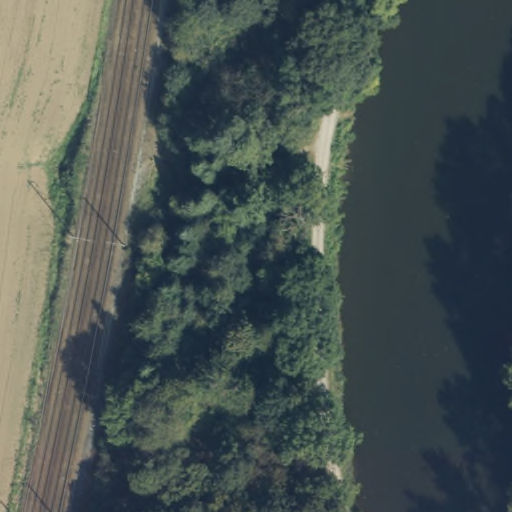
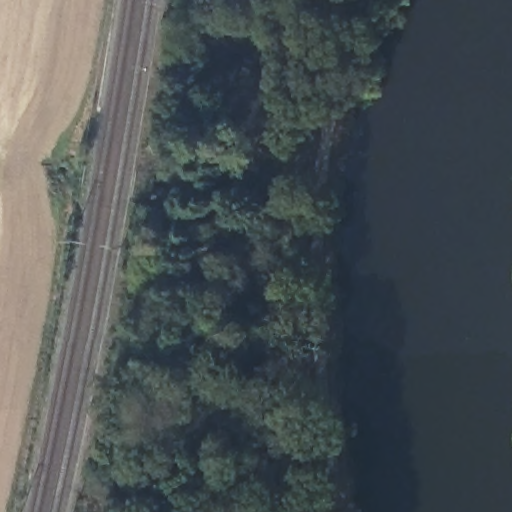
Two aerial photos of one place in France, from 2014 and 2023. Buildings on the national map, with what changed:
unchanged [(165,28),(166,13),(185,14),(183,29),(165,28)]

